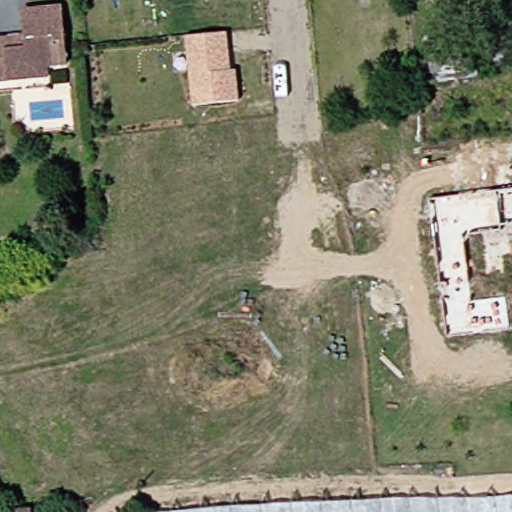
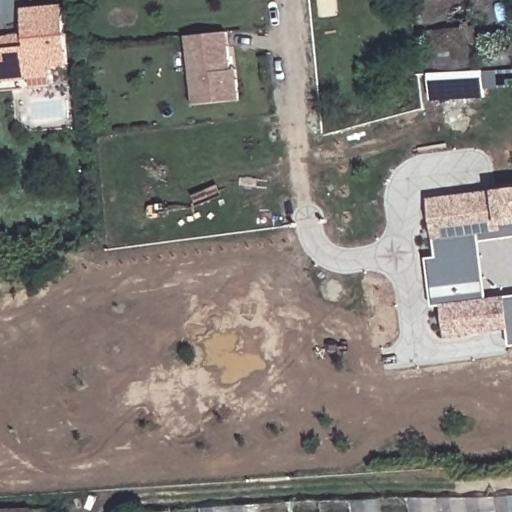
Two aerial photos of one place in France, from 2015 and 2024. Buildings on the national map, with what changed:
unchanged [(7,80),(0,80),(0,39),(6,39),(22,38),(20,11),(60,8),(64,64),(45,66),(46,75),(7,80)]
unchanged [(435,33),(469,30),(477,29),(480,66),(474,66),(439,70),(435,33)]
unchanged [(236,83),(237,104),(191,108),(185,39),(207,37),(226,35),(230,74),(235,73),(236,83)]
new [(443,304),(443,300),(450,299),(448,283),(440,285),(430,199),(497,190),(512,188),(512,224),(502,226),(503,232),(465,236),(472,300),(512,296),(512,329),(447,338),(443,304)]
unchanged [(102,231),(89,231),(89,221),(102,221),(102,231)]
unchanged [(512,498),(512,512),(221,512),(512,498)]
unchanged [(42,510),(42,512),(14,512),(42,510)]

